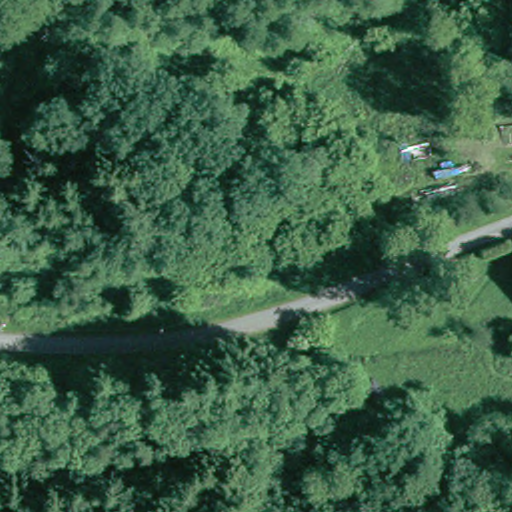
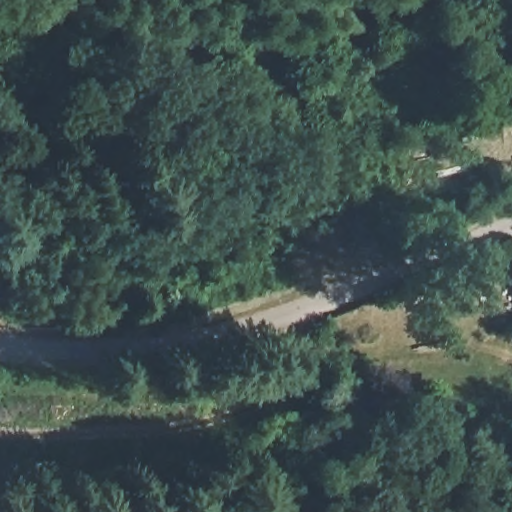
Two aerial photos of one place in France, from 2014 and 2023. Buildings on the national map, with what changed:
unchanged [(432,139),(437,158),(400,167),(395,149),(432,139)]

